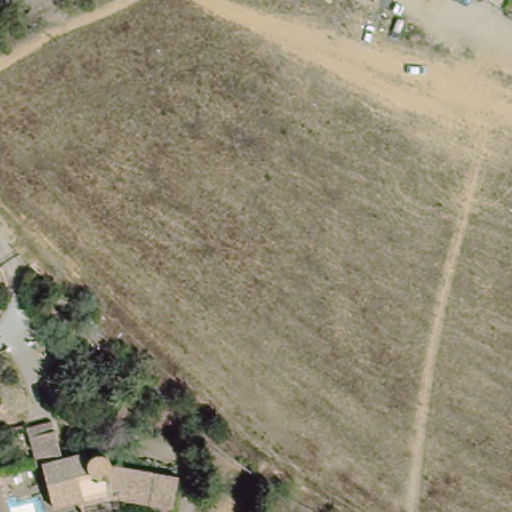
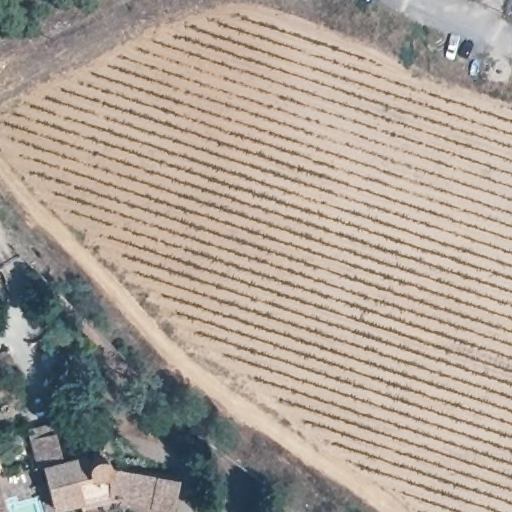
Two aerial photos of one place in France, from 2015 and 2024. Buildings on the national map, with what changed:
unchanged [(99,512),(87,512),(84,502),(60,511),(47,472),(43,473),(32,441),(30,432),(54,424),(57,433),(67,462),(84,456),(86,462),(92,459),(98,457),(106,459),(118,467),(180,476),(175,508),(123,500),(114,493),(113,493),(117,506),(99,512)]
unchanged [(0,501),(4,512),(0,512),(0,501)]

